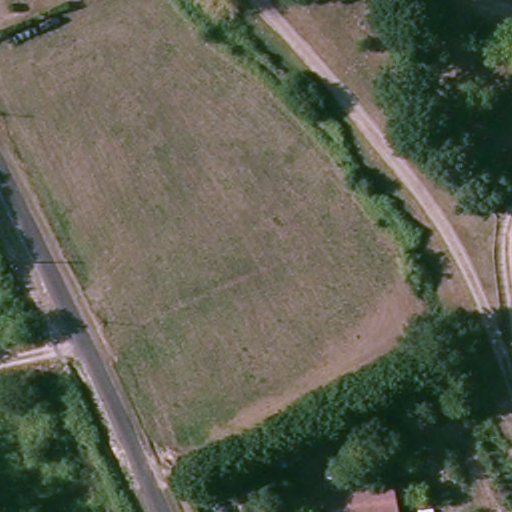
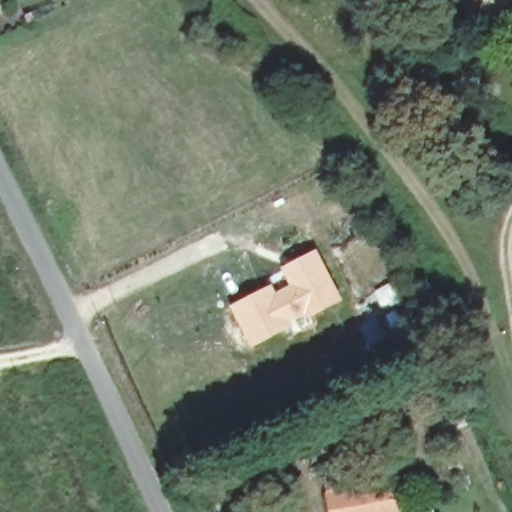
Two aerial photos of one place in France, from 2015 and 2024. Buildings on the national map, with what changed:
new [(272,284),(275,291),(289,284),(281,267),(316,249),(343,300),(251,347),(230,305),(272,284)]
unchanged [(327,490),(390,480),(393,505),(395,512),(330,512),(327,490)]

